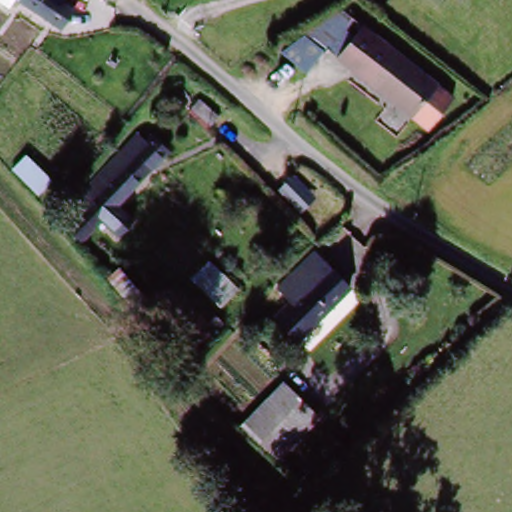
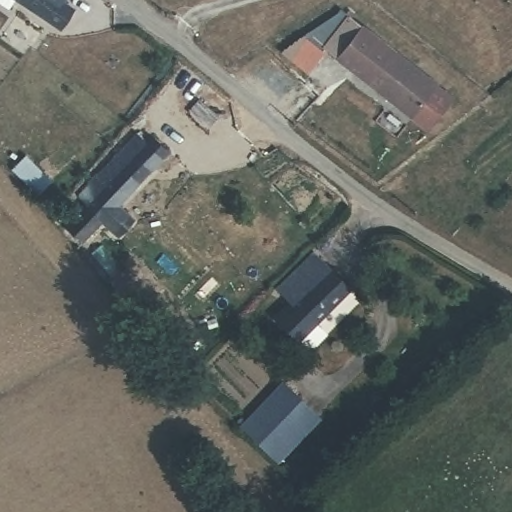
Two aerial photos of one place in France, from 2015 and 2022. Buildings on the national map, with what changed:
unchanged [(2,12),(0,11),(0,0),(11,0),(2,12)]
unchanged [(11,0),(64,0),(75,9),(56,33),(45,24),(11,0)]
unchanged [(407,118),(335,59),(359,28),(431,88),(445,100),(426,122),(413,111),(407,118)]
unchanged [(85,200),(140,142),(158,158),(101,217),(85,200)]
unchanged [(292,342),(275,322),(345,257),(365,278),(292,342)]
unchanged [(240,433),(281,392),(320,425),(277,469),(240,433)]

